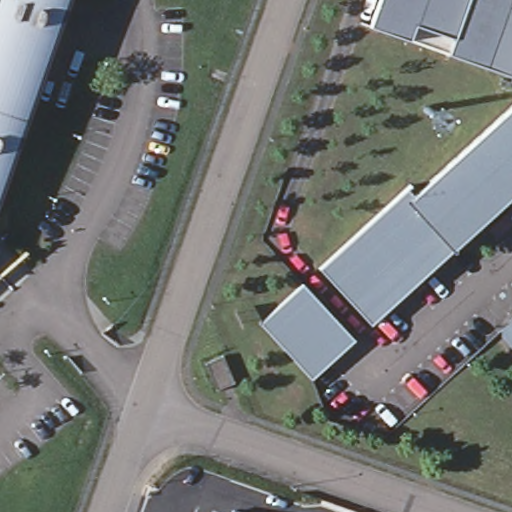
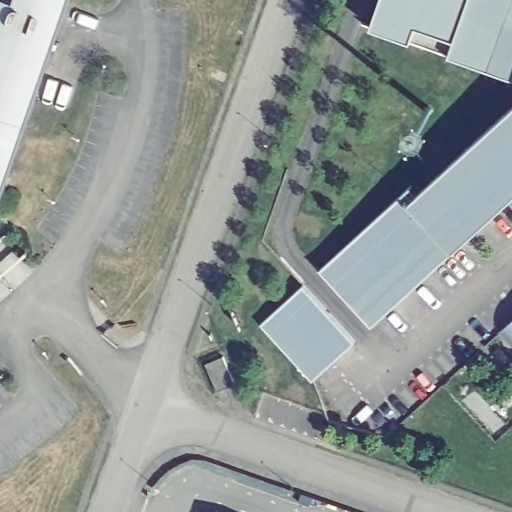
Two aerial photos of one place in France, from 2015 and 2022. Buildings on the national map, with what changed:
unchanged [(9,189),(0,215),(0,21),(7,0),(80,0),(9,189)]
unchanged [(363,26),(371,29),(382,0),(512,0),(512,80),(363,27),(363,26)]
unchanged [(409,192),(416,199),(512,110),(512,200),(373,329),(321,272),(412,188),(412,189),(413,189),(409,192)]
unchanged [(0,283),(0,277),(3,280),(0,283)]
unchanged [(304,287),(356,344),(314,383),(261,327),(304,287)]
unchanged [(512,324),(512,340),(504,331),(512,324)]
unchanged [(218,394),(206,367),(224,359),(236,386),(218,394)]

